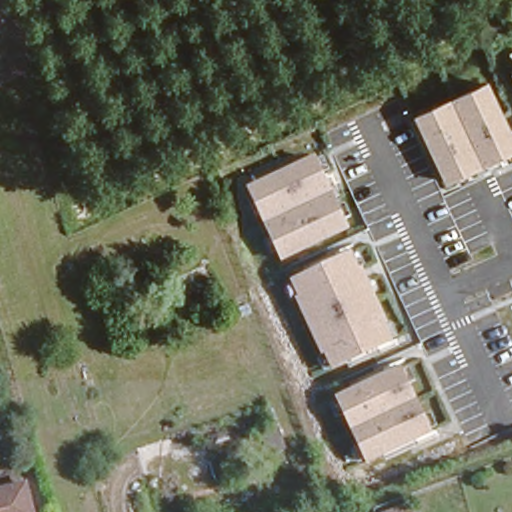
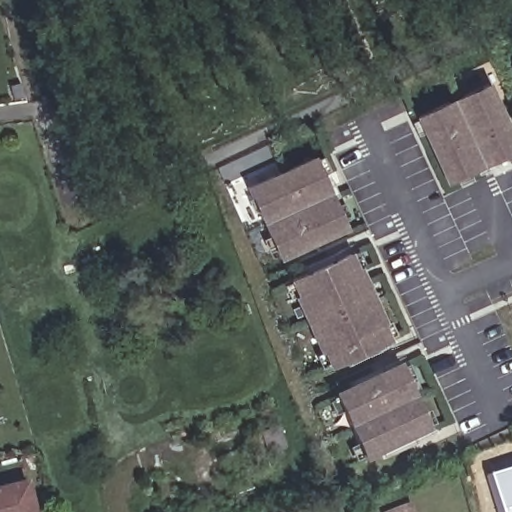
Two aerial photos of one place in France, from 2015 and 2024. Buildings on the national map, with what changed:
unchanged [(447,183),(415,114),(491,80),(512,127),(512,155),(447,183)]
unchanged [(282,262),(247,187),(313,155),(350,229),(282,262)]
unchanged [(332,370),(290,278),(353,250),(394,340),(332,370)]
unchanged [(367,463),(336,396),(402,366),(435,433),(367,463)]
new [(512,467),(512,512),(499,512),(488,475),(512,467)]
unchanged [(0,479),(24,473),(35,512),(0,512),(0,479)]
unchanged [(408,503),(412,512),(382,512),(408,503)]

